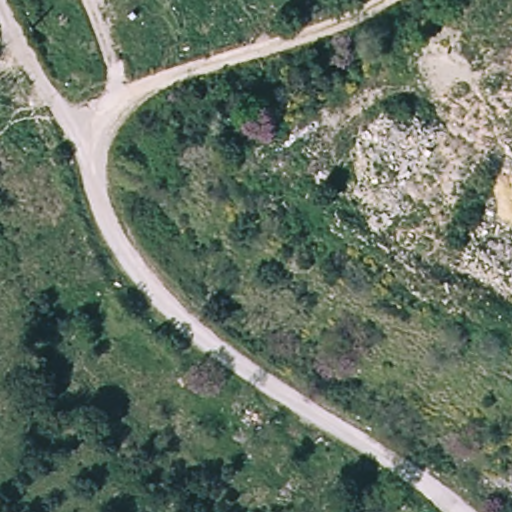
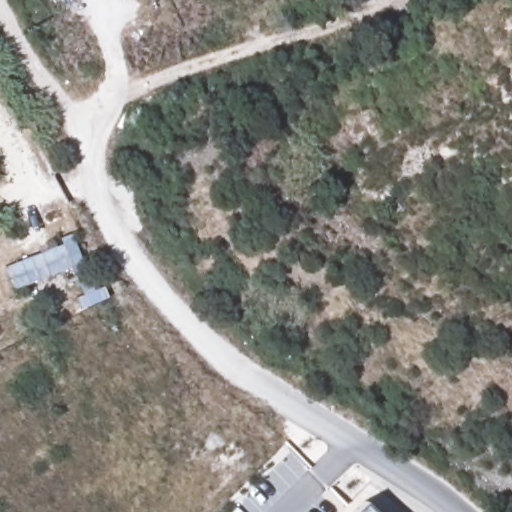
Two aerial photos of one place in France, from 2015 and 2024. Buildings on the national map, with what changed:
new [(72,266),(15,289),(6,267),(70,242),(68,236),(71,234),(93,291),(83,295),(72,266)]
new [(373,512),(354,512),(364,503),(373,512)]

